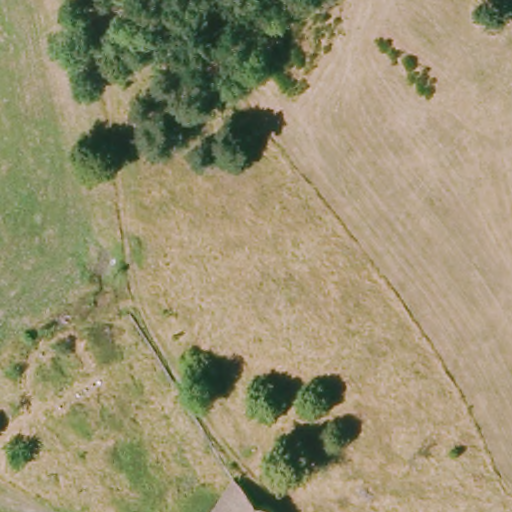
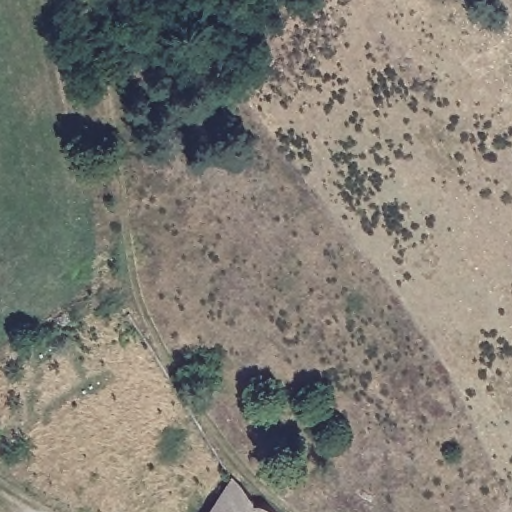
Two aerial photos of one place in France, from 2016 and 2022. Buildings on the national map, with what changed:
unchanged [(249,499),(277,510),(276,512),(209,512),(229,468),(249,499)]

